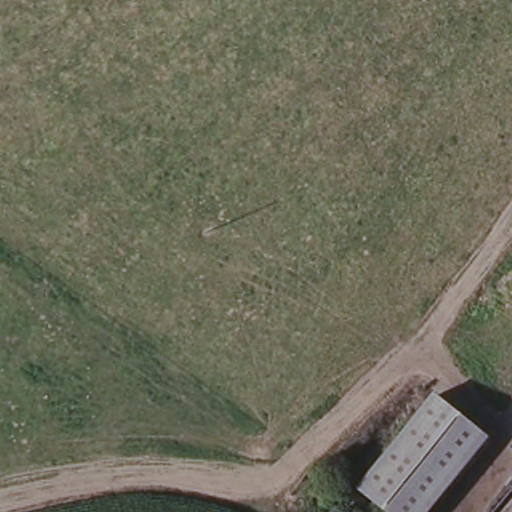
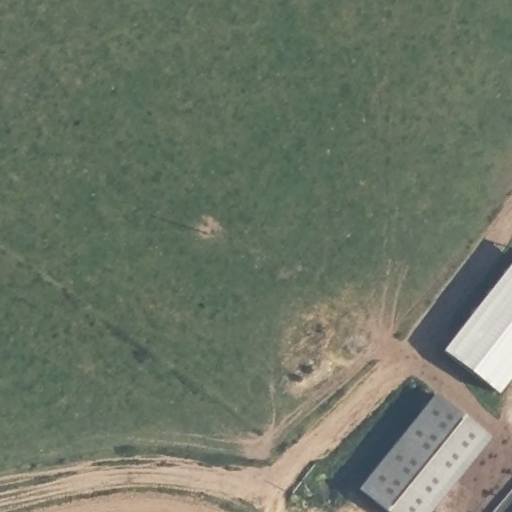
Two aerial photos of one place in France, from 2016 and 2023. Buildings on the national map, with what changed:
new [(512,268),(512,374),(497,393),(445,353),(512,268)]
unchanged [(437,396),(492,439),(433,512),(387,512),(361,491),(437,396)]

